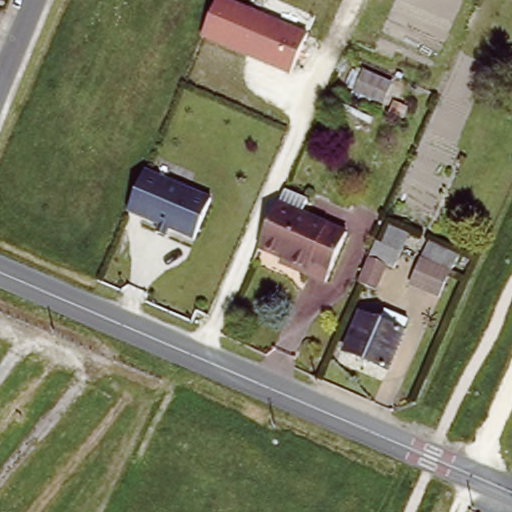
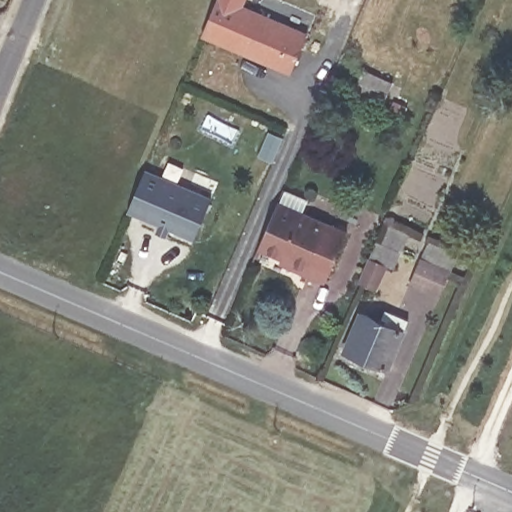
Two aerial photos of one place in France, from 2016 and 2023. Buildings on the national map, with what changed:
unchanged [(289,74),(202,36),(217,0),(230,0),(308,34),(289,74)]
unchanged [(390,85),(381,105),(352,92),(360,72),(390,85)]
unchanged [(148,229),(151,221),(120,208),(137,167),(204,196),(187,236),(163,226),(159,234),(148,229)]
unchanged [(281,263),(258,254),(276,210),(282,196),(306,206),(300,220),(346,239),(325,287),(286,272),(279,268),(281,263)]
unchanged [(369,291),(352,283),(370,244),(396,255),(389,270),(381,266),(369,291)]
unchanged [(451,261),(441,287),(412,273),(422,249),(451,261)]
unchanged [(379,328),(384,317),(406,326),(385,376),(345,358),(361,321),(379,328)]

